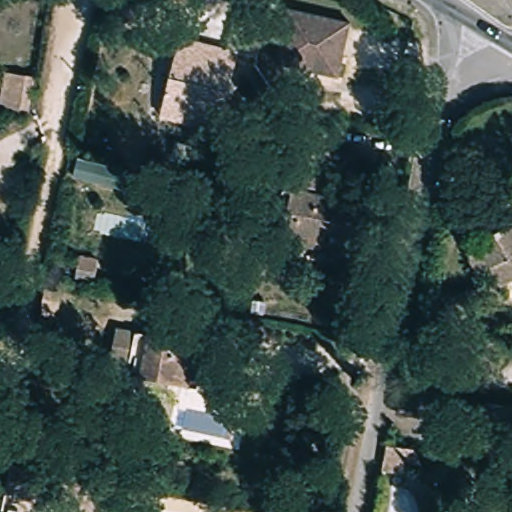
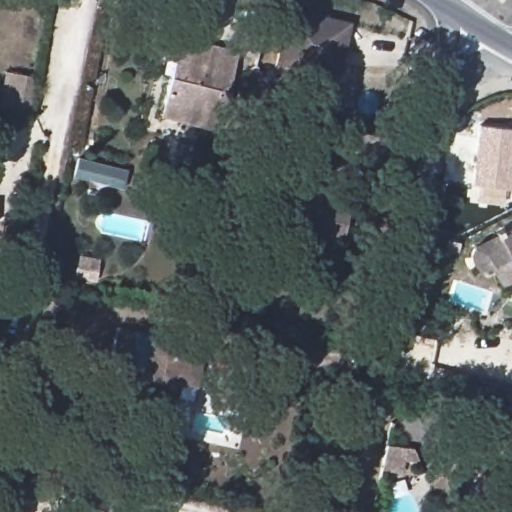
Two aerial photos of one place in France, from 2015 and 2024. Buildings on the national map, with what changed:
unchanged [(296,14),(359,25),(349,80),(287,68),(296,14)]
unchanged [(164,116),(166,105),(180,34),(213,40),(237,45),(233,70),(224,116),(221,129),(164,116)]
unchanged [(22,108),(8,105),(14,76),(28,80),(22,108)]
new [(512,174),(510,189),(471,184),(478,124),(512,128),(512,174)]
unchanged [(287,235),(290,220),(295,195),(289,194),(296,150),(324,155),(318,190),(310,189),(309,194),(338,200),(336,208),(352,211),(348,235),(332,231),(329,242),(328,251),(299,246),(301,237),(287,235)]
unchanged [(512,226),(512,268),(500,273),(493,255),(477,261),(471,247),(484,236),(512,226)]
unchanged [(56,293),(53,310),(37,306),(39,291),(39,290),(56,293)]
unchanged [(193,386),(137,375),(139,364),(109,358),(114,328),(145,335),(202,347),(193,386)]
unchanged [(475,440),(484,406),(512,414),(512,444),(510,450),(475,440)]
unchanged [(7,466),(85,482),(82,497),(53,492),(50,505),(2,496),(7,466)]

